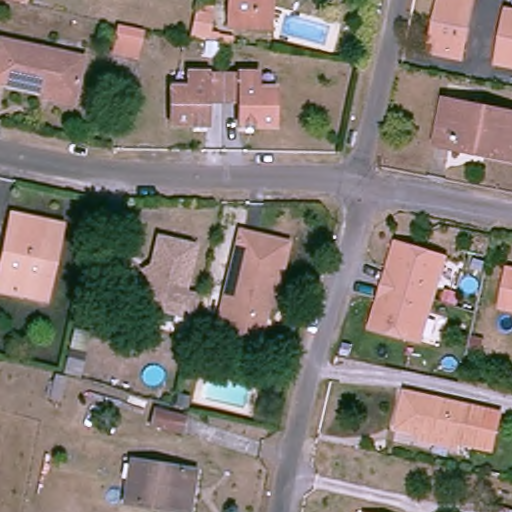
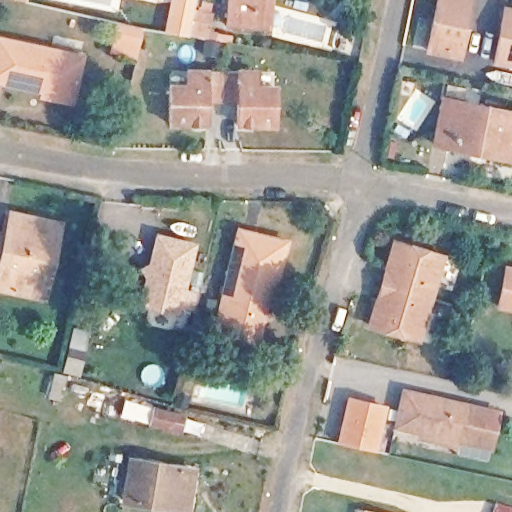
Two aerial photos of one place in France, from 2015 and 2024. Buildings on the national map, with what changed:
unchanged [(7,0),(28,0),(27,3),(7,0)]
unchanged [(257,26),(241,26),(240,0),(273,0),(273,10),(257,11),(257,26)]
unchanged [(430,48),(439,0),(470,0),(459,53),(430,48)]
unchanged [(196,4),(212,7),(209,25),(207,33),(190,30),(192,22),(196,4)]
unchanged [(495,60),(499,37),(501,26),(505,10),(512,12),(512,64),(495,60)]
unchanged [(140,30),(133,58),(109,53),(115,25),(140,30)]
unchanged [(59,35),(93,40),(77,108),(41,103),(41,94),(0,86),(0,31),(57,42),(59,35)]
unchanged [(171,128),(172,88),(191,89),(191,70),(257,70),(258,89),(278,89),(280,125),(277,129),(241,129),(241,119),(240,106),(207,107),(207,124),(207,130),(171,128)]
unchanged [(458,149),(438,144),(448,101),(512,114),(512,161),(458,149)]
unchanged [(0,285),(0,259),(10,212),(58,223),(55,242),(42,294),(12,287),(0,285)]
unchanged [(222,321),(239,234),(285,244),(273,302),(268,302),(259,342),(243,338),(219,333),(222,321)]
unchanged [(201,312),(188,307),(184,315),(151,307),(164,240),(197,248),(190,291),(206,294),(201,312)]
unchanged [(440,255),(439,258),(453,263),(447,285),(432,280),(416,338),(367,324),(392,241),(440,255)]
unchanged [(498,302),(507,263),(512,265),(512,306),(498,302)]
unchanged [(92,334),(84,371),(62,367),(70,329),(92,334)]
unchanged [(482,447),(478,446),(406,431),(414,393),(486,409),(490,410),(482,447)]
new [(346,395),(388,405),(378,451),(336,443),(346,395)]
unchanged [(149,427),(154,406),(186,413),(181,434),(149,427)]
unchanged [(131,454),(203,466),(195,512),(184,512),(125,501),(131,454)]
unchanged [(492,502),(512,509),(512,512),(488,512),(492,502)]

